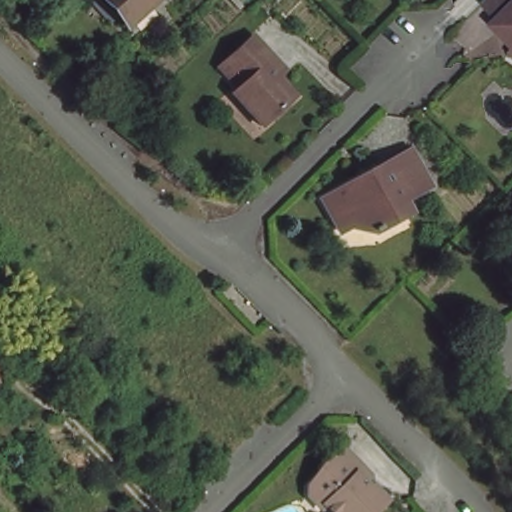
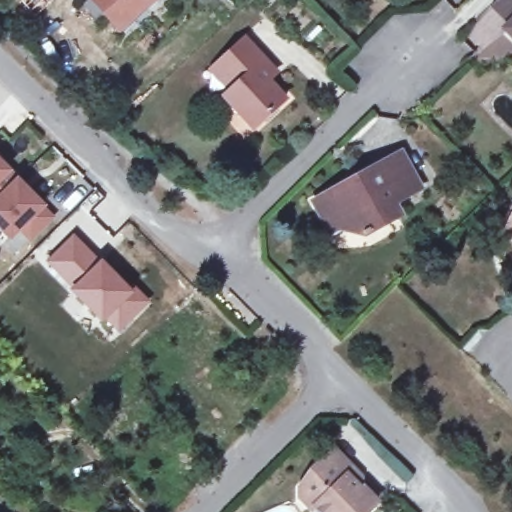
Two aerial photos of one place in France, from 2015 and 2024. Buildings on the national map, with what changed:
unchanged [(120,32),(90,0),(154,0),(120,32)]
unchanged [(495,11),(506,0),(512,0),(512,29),(495,11)]
unchanged [(507,34),(512,29),(512,39),(507,34)]
unchanged [(275,73),(266,81),(283,100),(252,129),(223,97),(229,91),(217,79),(210,70),(244,39),(252,48),(268,65),(275,73)]
unchanged [(328,220),(317,200),(358,178),(360,183),(367,179),(369,172),(404,153),(424,188),(412,194),(395,191),(391,193),(404,216),(367,236),(345,229),(336,234),(328,220)]
new [(16,180),(41,206),(39,207),(50,218),(29,239),(18,228),(9,237),(0,228),(0,164),(6,170),(16,180)]
unchanged [(507,231),(512,220),(512,233),(507,231)]
new [(74,231),(102,258),(69,288),(44,260),(74,231)]
new [(151,301),(118,333),(105,320),(102,322),(69,288),(102,258),(134,289),(137,287),(151,301)]
unchanged [(312,510),(300,499),(299,486),(311,474),(311,467),(332,447),(360,474),(354,481),(362,489),(363,488),(376,501),(365,512),(321,512),(316,507),(312,510)]

